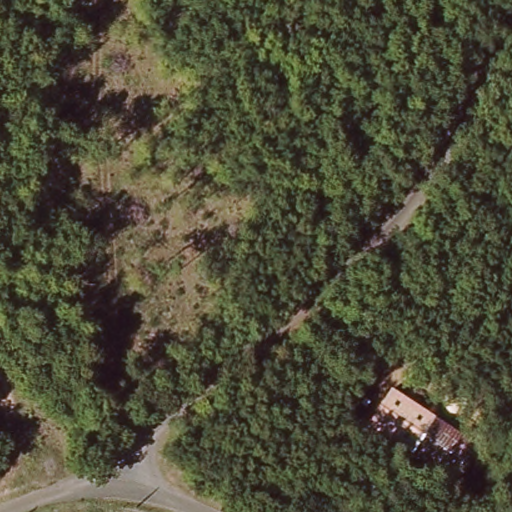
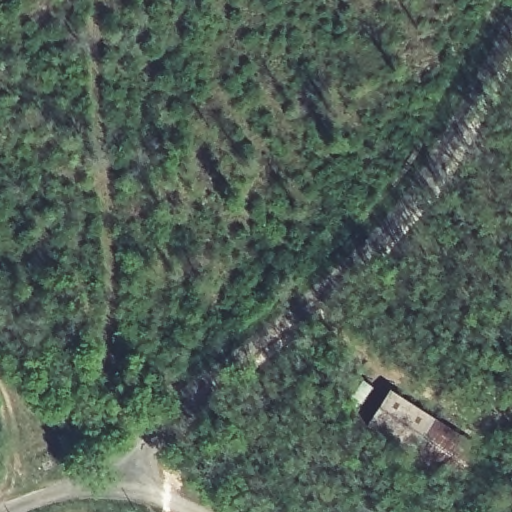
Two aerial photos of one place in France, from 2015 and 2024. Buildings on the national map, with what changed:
unchanged [(413,447),(409,453),(367,428),(390,390),(435,414),(413,447)]
unchanged [(455,475),(413,447),(435,414),(477,442),(455,475)]

